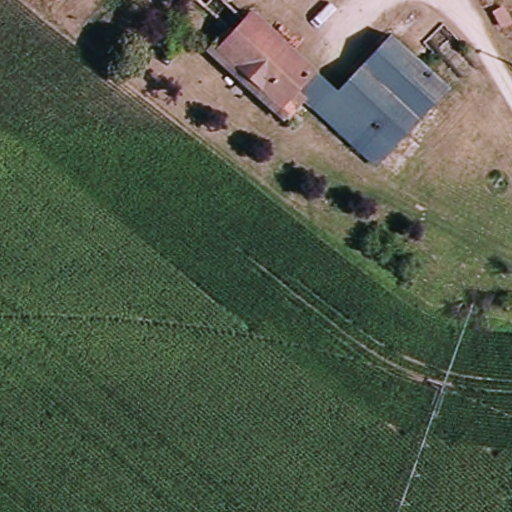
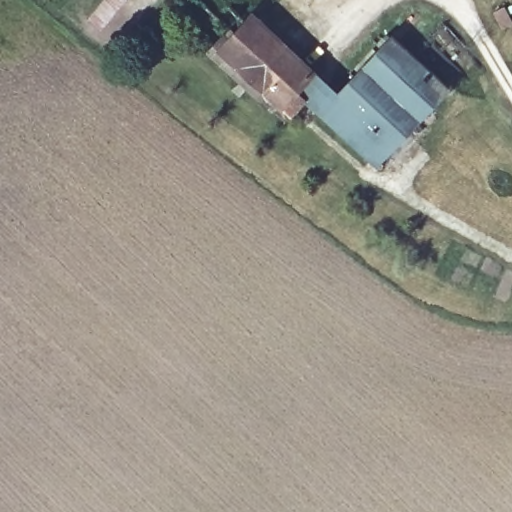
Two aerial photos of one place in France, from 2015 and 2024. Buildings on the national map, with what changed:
unchanged [(240,15),(324,95),(307,114),(291,99),(281,113),(272,104),(266,107),(205,52),(219,35),(180,0),(205,0),(231,24),(240,15)]
unchanged [(512,21),(512,23),(502,25),(494,6),(505,2),(512,21)]
unchanged [(379,39),(452,105),(384,179),(369,164),(365,165),(332,136),(307,114),(324,95),(379,39)]

